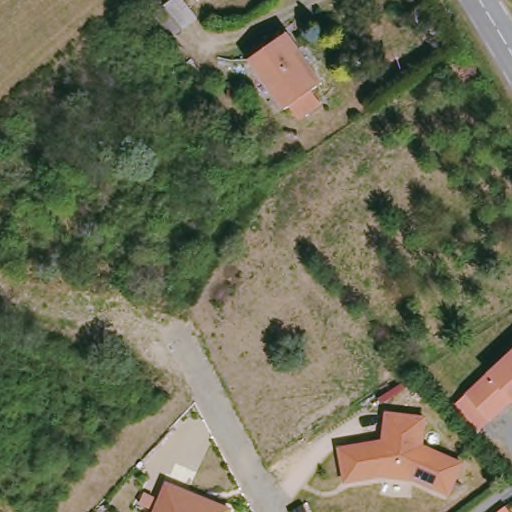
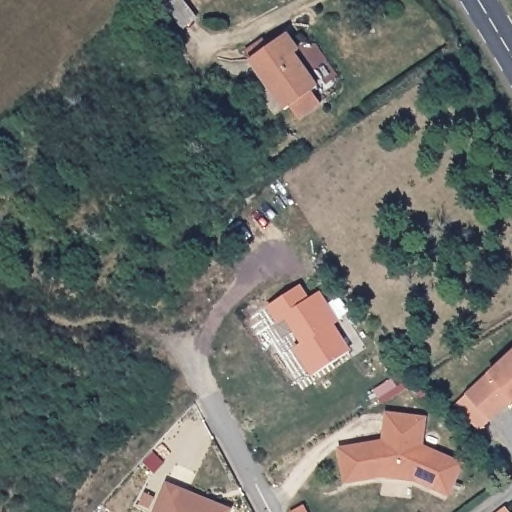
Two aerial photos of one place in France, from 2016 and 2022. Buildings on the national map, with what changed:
unchanged [(184,0),(201,24),(178,41),(155,11),(170,0),(184,0)]
unchanged [(324,83),(318,86),(314,90),(321,104),(299,118),(290,104),(285,107),(250,59),(251,59),(246,52),(263,40),(268,46),(288,34),(299,50),(324,83)]
new [(312,376),(294,349),(300,344),(284,319),(278,323),(266,306),(301,286),(309,298),(321,292),(339,321),(334,324),(351,351),(312,376)]
unchanged [(463,413),(456,405),(512,354),(512,400),(489,422),(479,431),(463,413)]
unchanged [(387,414),(424,419),(421,447),(462,465),(448,495),(414,480),(381,476),(344,481),(339,448),(383,442),(387,414)]
unchanged [(229,512),(155,512),(166,484),(229,510),(229,512)]

